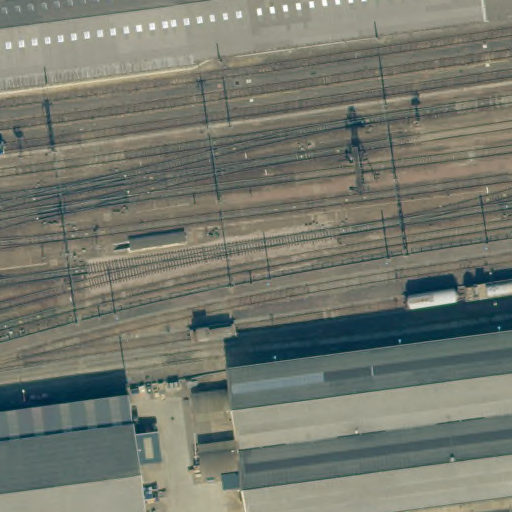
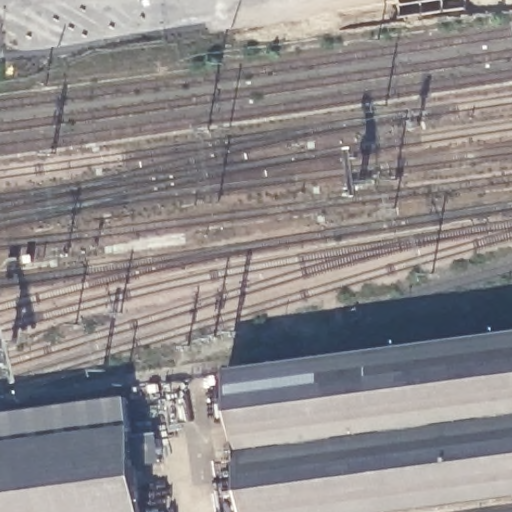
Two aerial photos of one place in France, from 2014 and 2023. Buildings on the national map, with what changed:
demolished [(0,62),(0,0),(480,0),(0,62)]
unchanged [(512,330),(512,497),(399,512),(248,512),(228,368),(512,330)]
unchanged [(123,393),(127,423),(139,512),(0,512),(0,411),(123,393)]

